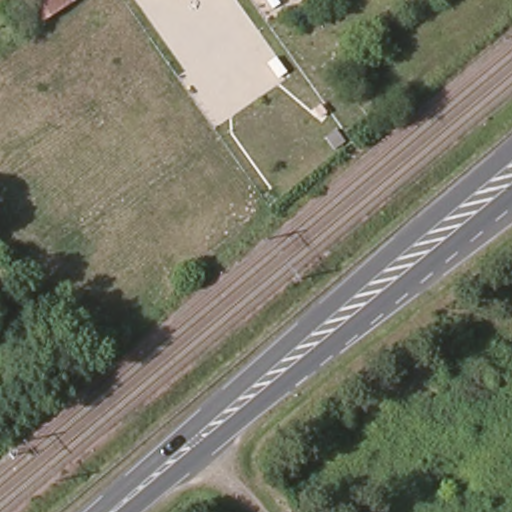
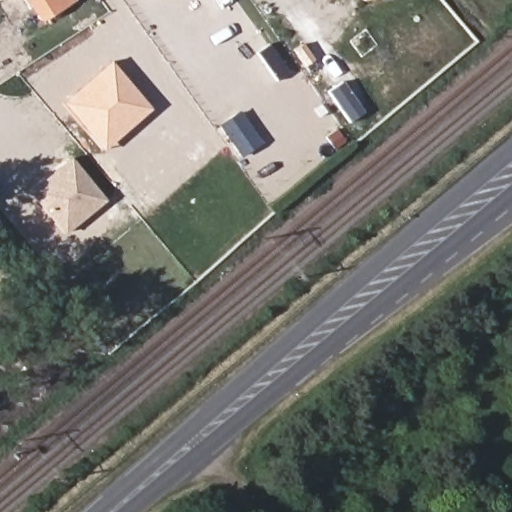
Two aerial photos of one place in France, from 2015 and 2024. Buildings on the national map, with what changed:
unchanged [(44,21),(30,0),(75,0),(44,21)]
new [(363,1),(362,0),(365,0),(363,1)]
new [(109,61),(149,109),(102,151),(61,103),(109,61)]
new [(62,234),(26,191),(70,157),(105,201),(62,234)]

